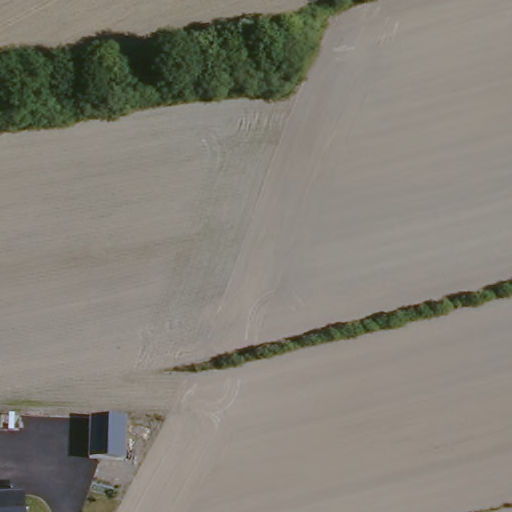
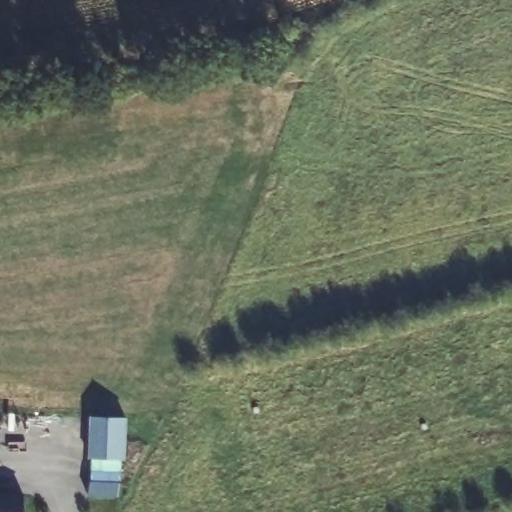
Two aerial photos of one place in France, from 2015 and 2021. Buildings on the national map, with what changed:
unchanged [(126,459),(89,460),(90,417),(128,418),(126,459)]
unchanged [(28,512),(0,512),(0,491),(25,487),(28,512)]

